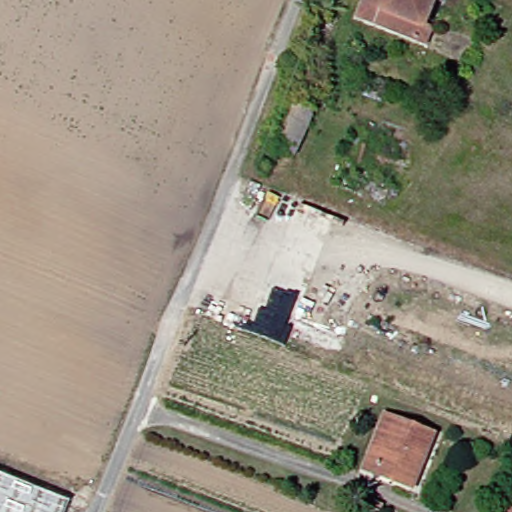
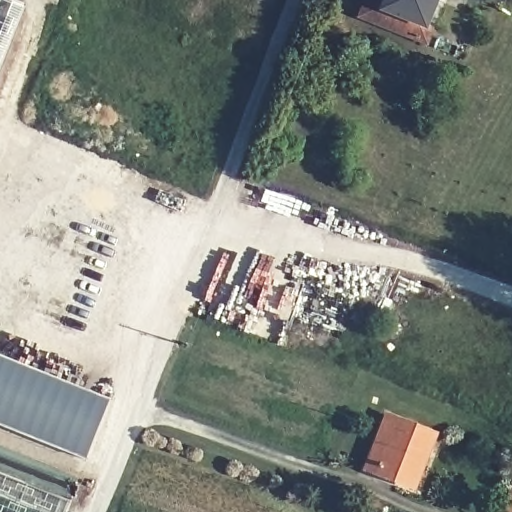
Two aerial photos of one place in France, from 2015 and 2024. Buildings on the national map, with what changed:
new [(19,0),(22,1),(0,57),(0,0),(19,0)]
unchanged [(415,38),(364,18),(370,0),(439,0),(429,27),(434,29),(429,43),(415,38)]
new [(86,453),(0,421),(0,353),(110,395),(86,453)]
unchanged [(436,438),(415,490),(369,471),(388,418),(436,438)]
unchanged [(74,500),(69,512),(0,512),(0,472),(74,500)]

